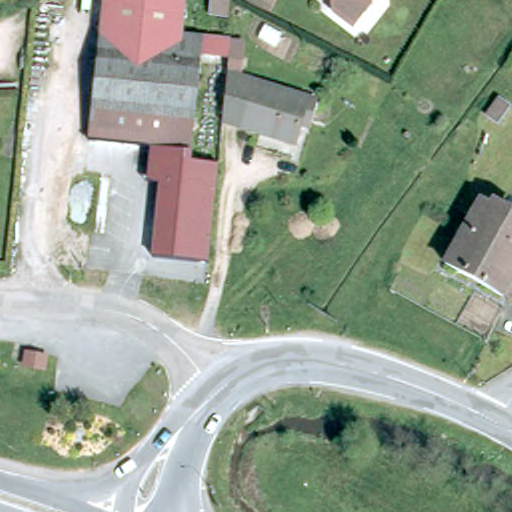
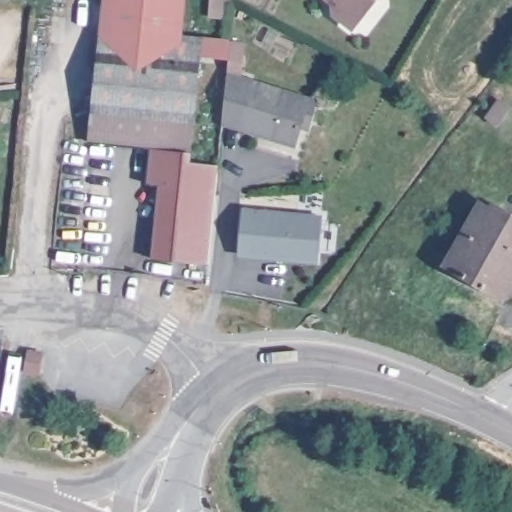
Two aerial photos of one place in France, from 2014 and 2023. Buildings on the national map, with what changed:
unchanged [(204,41),(235,44),(249,45),(246,74),(233,72),(234,62),(202,59),(193,155),(154,150),(96,147),(107,0),(187,0),(182,39),(204,41)]
unchanged [(210,10),(211,0),(227,0),(226,11),(210,10)]
unchanged [(336,6),(326,0),(376,0),(379,1),(362,25),(357,34),(330,15),(336,6)]
unchanged [(320,106),(314,125),(305,122),(297,147),(227,125),(232,79),(320,106)]
unchanged [(512,110),(512,117),(505,128),(492,119),(502,103),(512,110)]
unchanged [(192,165),(222,169),(211,267),(156,261),(165,188),(150,186),(151,170),(154,150),(193,155),(192,165)]
unchanged [(485,205),(512,223),(512,287),(504,301),(446,268),(454,253),(481,206),(485,205)]
new [(323,215),(320,262),(239,255),(243,207),(323,215)]
unchanged [(27,366),(29,358),(44,361),(42,370),(42,371),(27,368),(27,366)]

